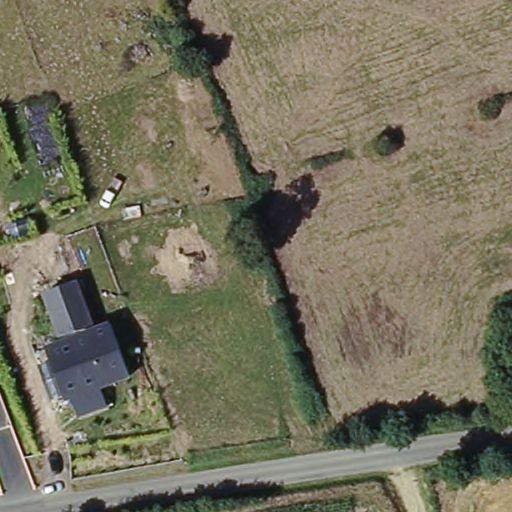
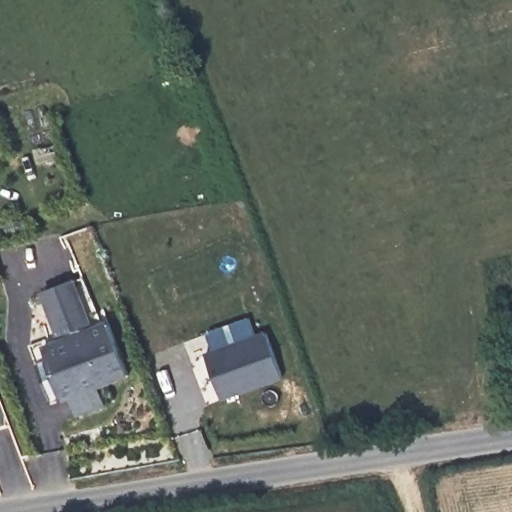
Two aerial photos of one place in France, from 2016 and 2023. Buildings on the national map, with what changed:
unchanged [(45,347),(61,341),(42,295),(77,281),(95,327),(109,323),(130,375),(66,398),(45,347)]
new [(256,334),(267,332),(282,379),(225,399),(208,353),(215,350),(207,333),(249,319),(256,334)]

